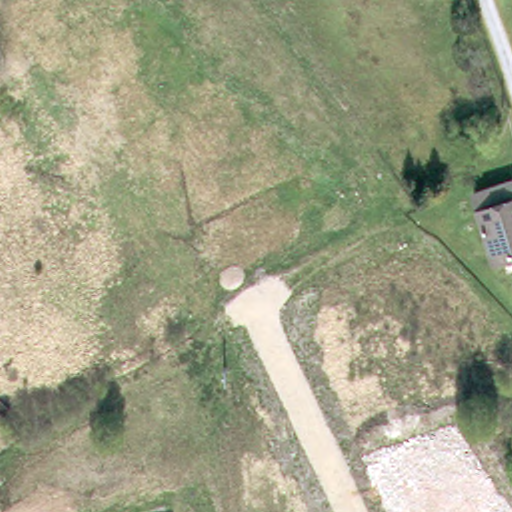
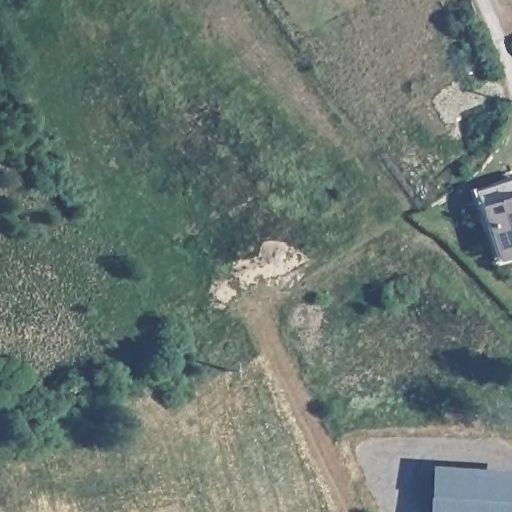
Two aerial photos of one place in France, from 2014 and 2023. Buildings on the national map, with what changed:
unchanged [(496,263),(473,195),(512,184),(512,258),(496,263)]
new [(512,471),(512,506),(512,512),(424,512),(427,465),(512,471)]

